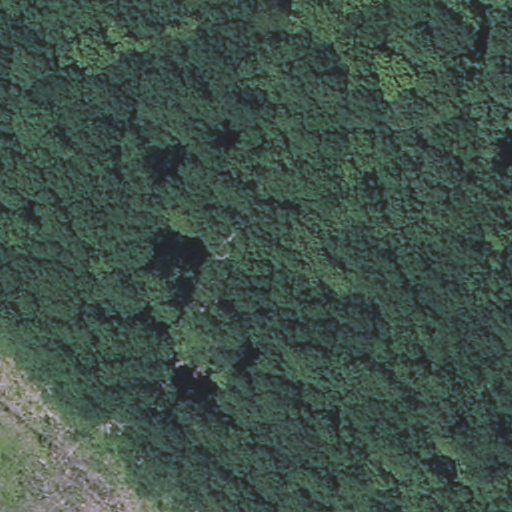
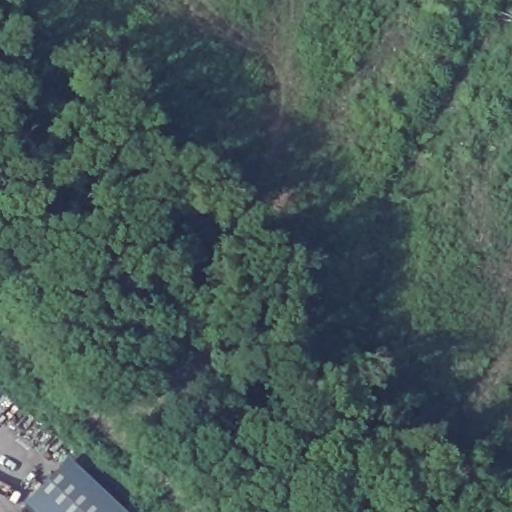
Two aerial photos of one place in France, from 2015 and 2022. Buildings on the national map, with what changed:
new [(39,512),(29,502),(71,458),(129,512),(39,512)]

